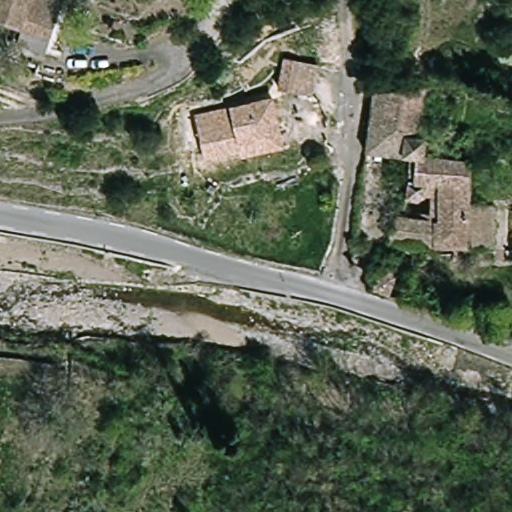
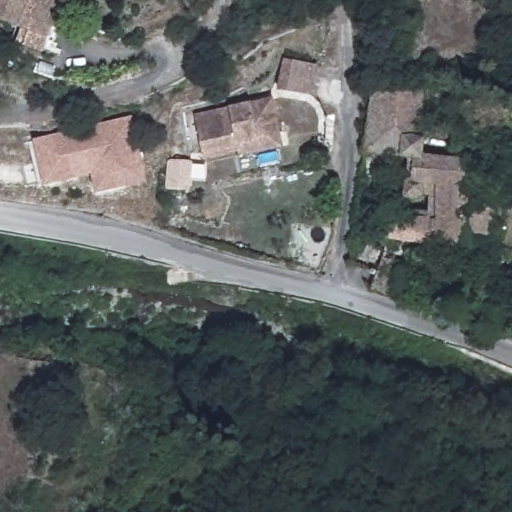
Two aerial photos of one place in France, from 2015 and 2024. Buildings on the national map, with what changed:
unchanged [(30,41),(35,25),(4,16),(9,0),(70,0),(56,49),(30,41)]
unchanged [(305,97),(276,87),(287,58),(315,69),(305,97)]
unchanged [(416,86),(430,84),(426,110),(413,109),(411,124),(425,126),(422,140),(419,153),(390,155),(371,152),(380,96),(395,91),(416,86)]
unchanged [(238,155),(237,147),(201,151),(201,147),(198,109),(277,103),(280,139),(280,152),(238,155)]
new [(46,186),(34,140),(132,116),(149,182),(97,195),(92,175),(46,186)]
unchanged [(467,164),(461,202),(486,205),(481,249),(456,246),(386,238),(394,215),(431,220),(433,204),(396,199),(400,179),(412,181),(419,153),(467,164)]
new [(193,160),(191,191),(166,190),(168,160),(193,160)]
unchanged [(401,293),(407,272),(434,281),(426,302),(401,293)]

